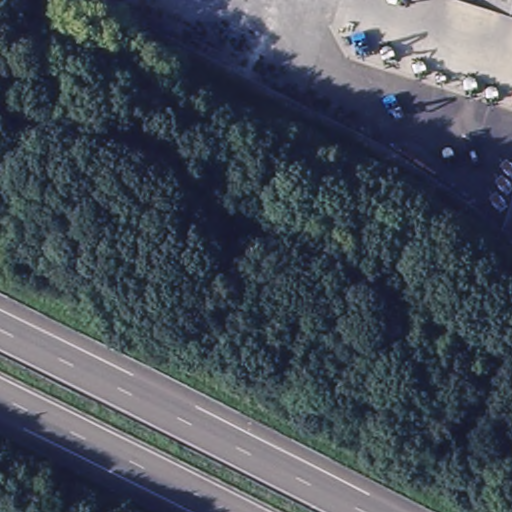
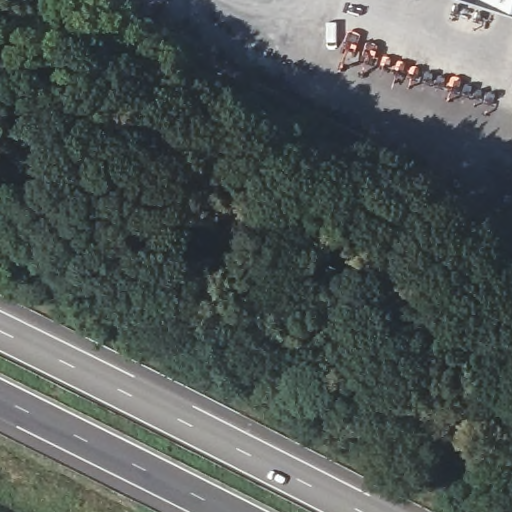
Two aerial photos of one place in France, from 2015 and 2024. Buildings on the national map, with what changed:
unchanged [(456,0),(512,0),(512,18),(456,0)]

